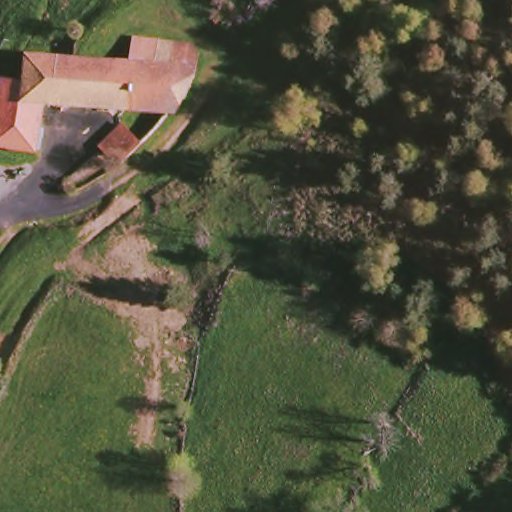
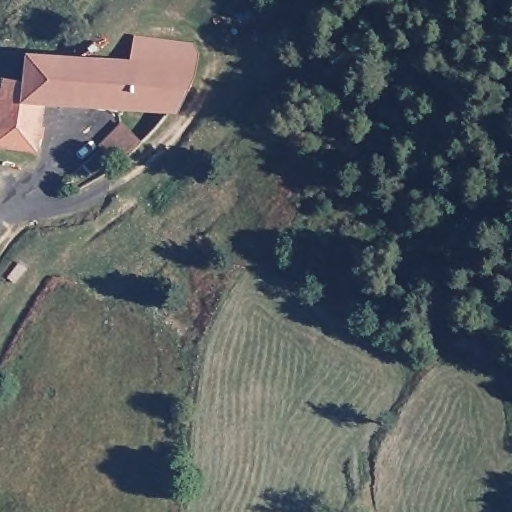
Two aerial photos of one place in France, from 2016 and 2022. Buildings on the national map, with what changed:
unchanged [(173,108),(113,108),(43,109),(40,147),(0,145),(0,76),(27,77),(28,53),(133,56),(136,37),(178,41),(198,43),(173,108)]

